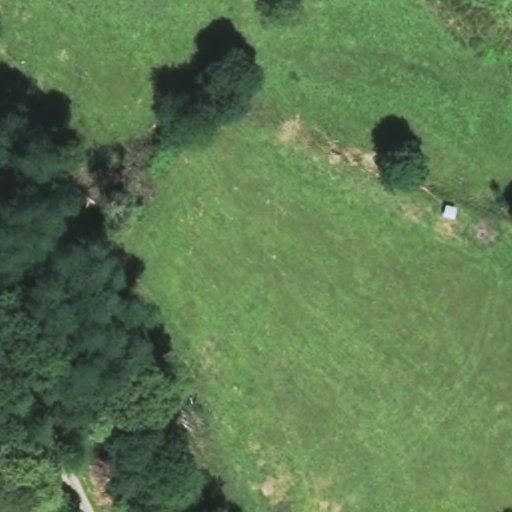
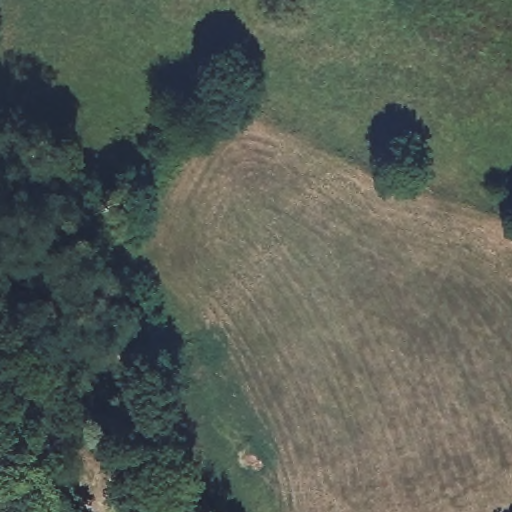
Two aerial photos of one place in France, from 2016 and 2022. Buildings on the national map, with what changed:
unchanged [(0,512),(0,504),(2,512),(0,512)]

